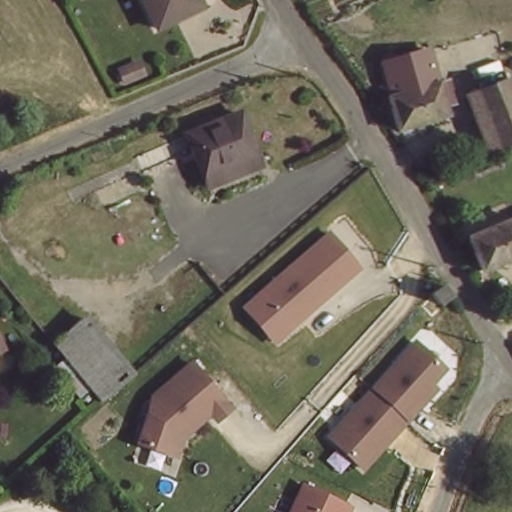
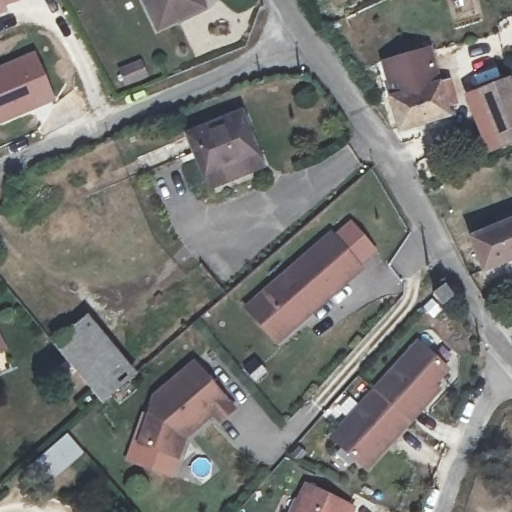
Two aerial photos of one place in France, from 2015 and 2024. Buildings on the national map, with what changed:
new [(19,1),(6,5),(8,11),(0,14),(0,0),(18,0),(19,1)]
unchanged [(204,9),(157,28),(145,0),(200,0),(204,9)]
new [(56,99),(0,124),(0,65),(34,51),(56,99)]
unchanged [(502,78),(512,107),(512,151),(494,157),(471,88),(502,78)]
unchanged [(436,84),(447,120),(398,131),(388,96),(436,84)]
unchanged [(202,176),(186,132),(242,111),(258,155),(262,165),(207,187),(202,176)]
unchanged [(467,247),(512,224),(512,259),(485,275),(467,247)]
unchanged [(276,347),(241,306),(331,230),(364,268),(276,347)]
unchanged [(446,276),(454,290),(442,299),(433,289),(446,276)]
unchanged [(132,376),(101,403),(50,341),(82,316),(132,376)]
unchanged [(451,368),(365,464),(330,431),(419,337),(451,368)]
unchanged [(5,351),(0,354),(0,342),(5,351)]
unchanged [(236,404),(221,417),(213,409),(184,433),(181,449),(137,435),(153,386),(198,353),(236,404)]
new [(66,433),(83,453),(46,485),(29,465),(66,433)]
unchanged [(305,477),(351,499),(345,512),(289,512),(298,493),(305,477)]

